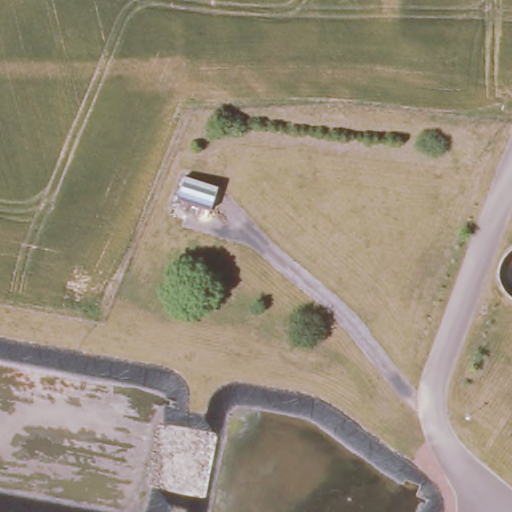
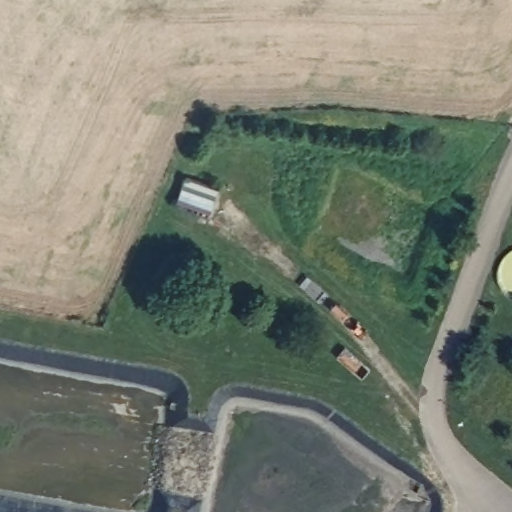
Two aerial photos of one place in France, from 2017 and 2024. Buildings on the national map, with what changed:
unchanged [(218,187),(214,210),(178,199),(185,177),(218,187)]

